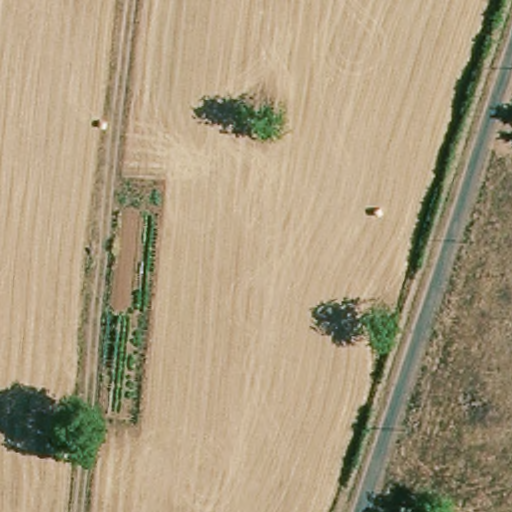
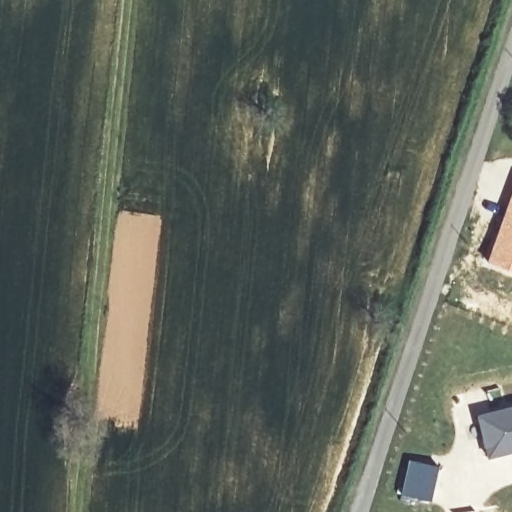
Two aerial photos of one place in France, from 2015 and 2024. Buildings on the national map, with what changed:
new [(512,188),(512,269),(485,260),(512,188)]
new [(512,404),(512,452),(486,458),(475,413),(512,404)]
new [(407,458),(439,465),(430,501),(399,495),(407,458)]

